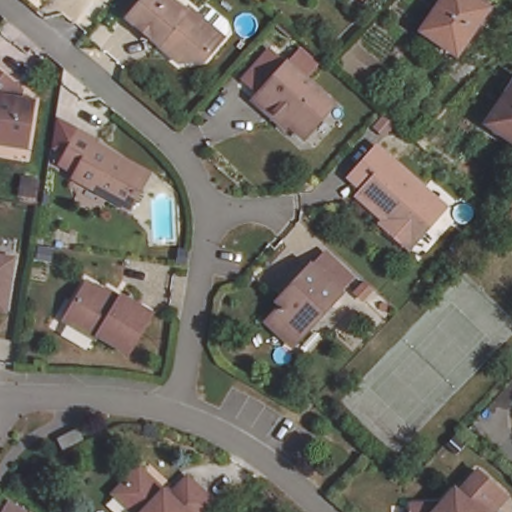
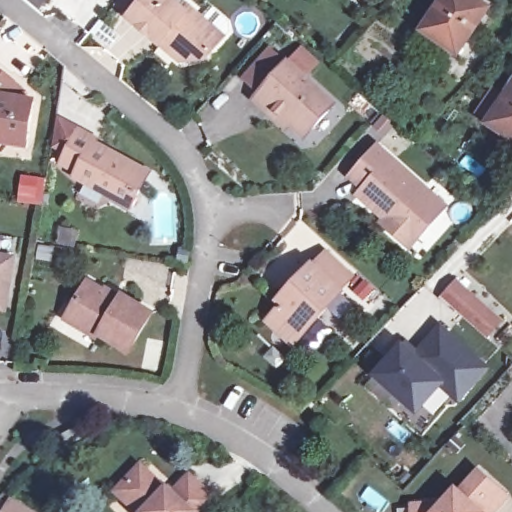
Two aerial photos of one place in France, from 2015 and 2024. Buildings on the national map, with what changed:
unchanged [(124,17),(139,0),(168,0),(181,10),(184,7),(213,30),(218,36),(208,49),(199,58),(183,59),(176,60),(156,43),(124,17)]
unchanged [(352,0),(351,2),(348,0),(352,0)]
unchanged [(429,29),(448,0),(483,0),(494,7),(463,52),(448,41),(441,51),(422,38),(429,29)]
unchanged [(271,107),(268,111),(254,99),(261,92),(245,78),(271,49),(286,63),(288,61),(334,104),(305,137),(271,107)]
unchanged [(34,90),(28,129),(0,125),(0,61),(21,78),(19,88),(34,90)]
unchanged [(419,87),(408,101),(387,84),(398,70),(419,87)]
unchanged [(512,86),(512,138),(488,122),(512,86)]
unchanged [(149,173),(131,207),(75,176),(78,172),(62,163),(68,153),(55,146),(60,119),(79,130),(97,139),(95,143),(149,173)]
unchanged [(384,223),(387,219),(359,194),(364,188),(351,175),(378,145),(446,206),(417,239),(411,246),(384,223)]
unchanged [(512,220),(502,210),(512,200),(512,220)]
unchanged [(294,344),(268,320),(294,291),(291,287),(312,264),(314,265),(326,252),(353,277),(341,290),(343,292),(294,344)]
unchanged [(0,308),(0,255),(13,257),(7,299),(5,309),(0,308)]
new [(458,279),(504,320),(488,339),(441,297),(458,279)]
unchanged [(129,351),(100,334),(98,338),(65,319),(88,281),(119,299),(123,294),(153,312),(129,351)]
new [(439,323),(490,369),(459,404),(442,388),(418,416),(373,374),(403,341),(409,338),(418,347),(439,323)]
unchanged [(166,495),(183,476),(209,501),(199,512),(131,512),(109,493),(114,488),(134,466),(166,495)]
unchanged [(411,501),(441,499),(454,484),(458,488),(478,467),(506,492),(488,512),(411,512),(411,501)]
unchanged [(10,503),(27,512),(5,512),(10,503)]

